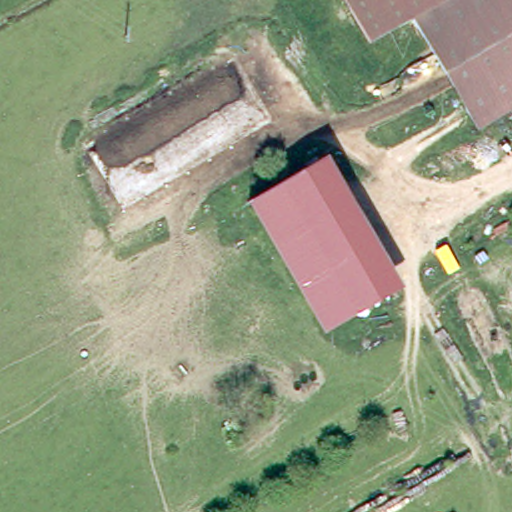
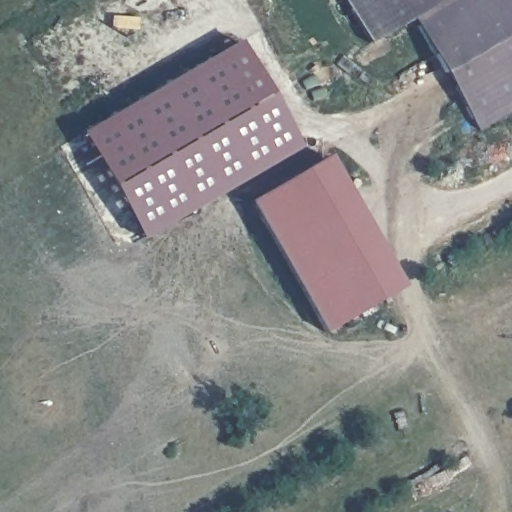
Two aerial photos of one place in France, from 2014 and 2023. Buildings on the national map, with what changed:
unchanged [(375,43),(352,0),(512,0),(512,110),(482,128),(419,19),(375,43)]
new [(300,149),(141,239),(79,133),(237,40),(300,149)]
unchanged [(258,210),(332,164),(411,290),(336,339),(258,210)]

